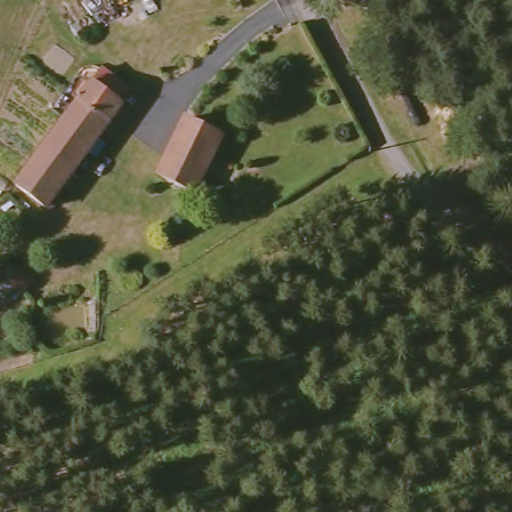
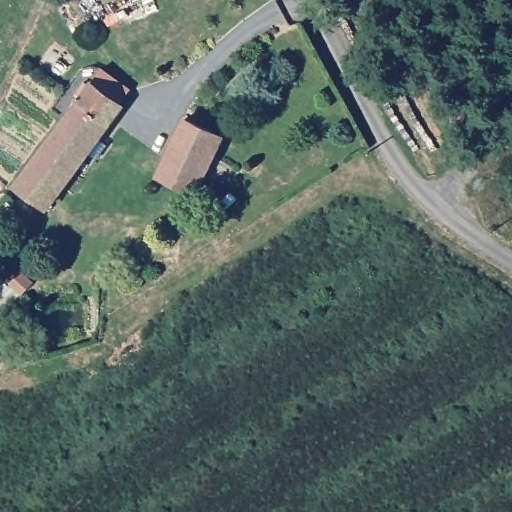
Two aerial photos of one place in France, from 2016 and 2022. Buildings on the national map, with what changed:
unchanged [(119,100),(46,209),(15,187),(88,82),(119,100)]
unchanged [(219,136),(190,192),(158,174),(183,119),(219,136)]
unchanged [(179,220),(176,239),(160,237),(162,225),(163,217),(179,220)]
unchanged [(11,267),(33,287),(0,312),(0,275),(11,267)]

